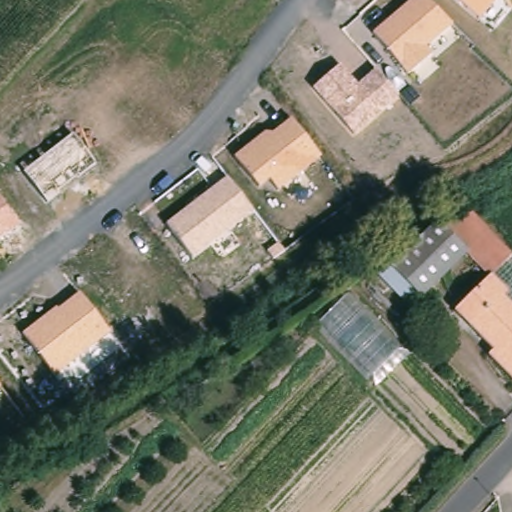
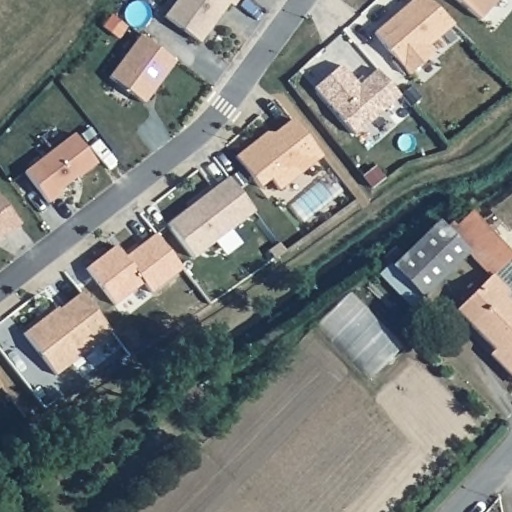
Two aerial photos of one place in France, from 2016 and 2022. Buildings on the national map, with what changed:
new [(237,0),(232,6),(227,4),(199,43),(164,16),(176,0),(237,0)]
unchanged [(409,0),(429,0),(452,23),(426,45),(432,52),(407,75),(370,33),(409,0)]
unchanged [(454,0),(495,0),(477,21),(454,0)]
new [(139,36),(174,61),(142,103),(108,77),(139,36)]
unchanged [(311,89),(341,65),(357,85),(375,70),(397,98),(353,135),(311,89)]
unchanged [(234,158),(262,134),(273,135),(291,119),(322,157),(277,192),(268,182),(258,189),(234,158)]
unchanged [(22,172),(74,134),(95,164),(47,204),(22,172)]
new [(327,174),(342,194),(302,224),(288,206),(327,174)]
unchanged [(167,224),(225,177),(254,213),(192,259),(167,224)]
unchanged [(17,225),(0,237),(0,200),(17,225)]
unchanged [(488,357),(452,318),(461,309),(456,304),(469,290),(474,295),(486,283),(462,259),(416,302),(379,264),(392,252),(398,258),(433,226),(440,232),(446,228),(449,231),(465,217),(512,265),(512,388),(485,361),(488,357)]
new [(115,246),(124,258),(154,234),(181,269),(150,293),(142,283),(114,305),(85,269),(115,246)]
unchanged [(21,334),(52,307),(56,311),(80,290),(110,333),(56,376),(21,334)]
unchanged [(402,344),(373,379),(317,328),(350,296),(402,344)]

